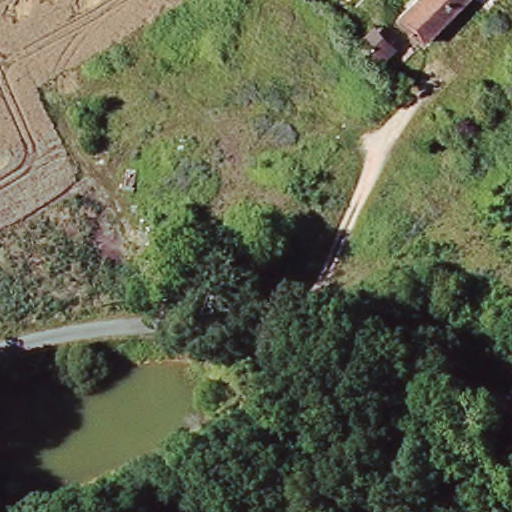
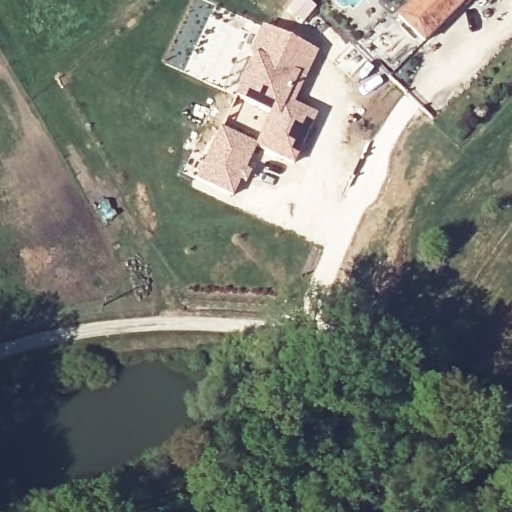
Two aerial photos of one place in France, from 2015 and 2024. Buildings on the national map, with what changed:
unchanged [(400,20),(420,0),(467,0),(424,44),(400,20)]
new [(251,53),(264,26),(281,35),(317,51),(304,79),(296,96),(293,103),(316,114),(293,163),(255,146),(271,113),(236,96),(222,90),(235,63),(249,69),(255,56),(251,53)]
unchanged [(395,48),(378,65),(358,44),(375,27),(395,48)]

